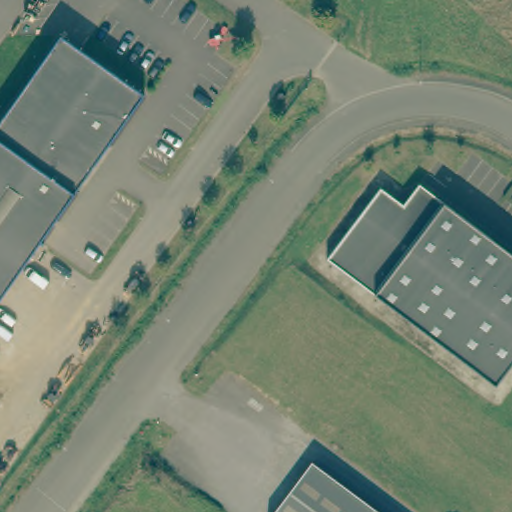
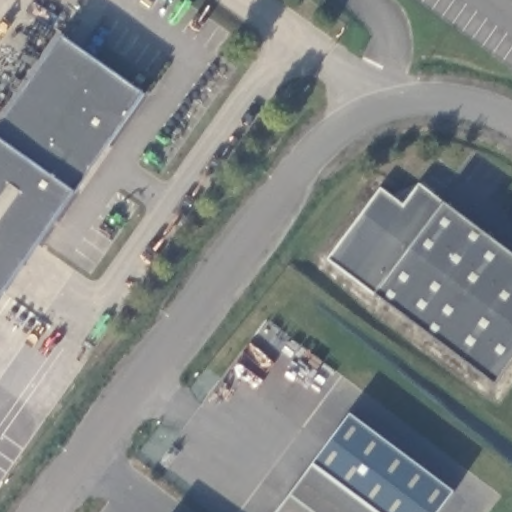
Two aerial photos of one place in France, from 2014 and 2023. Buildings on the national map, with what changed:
unchanged [(59,36),(142,96),(0,297),(0,119),(59,36)]
unchanged [(325,263),(378,191),(401,208),(417,188),(429,196),(512,259),(512,364),(493,389),(325,263)]
new [(438,512),(375,512),(311,464),(350,415),(453,493),(438,512)]
unchanged [(274,512),(310,463),(375,512),(274,512)]

